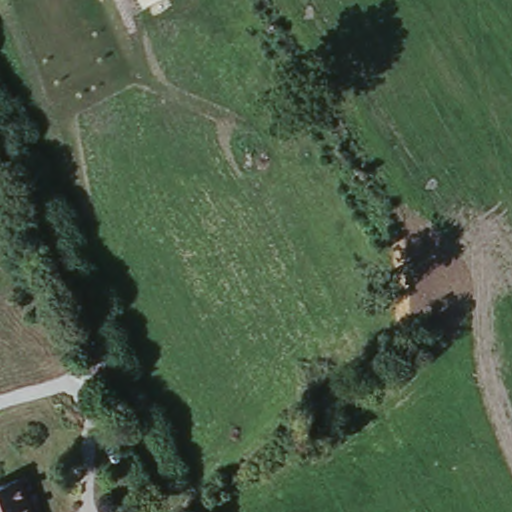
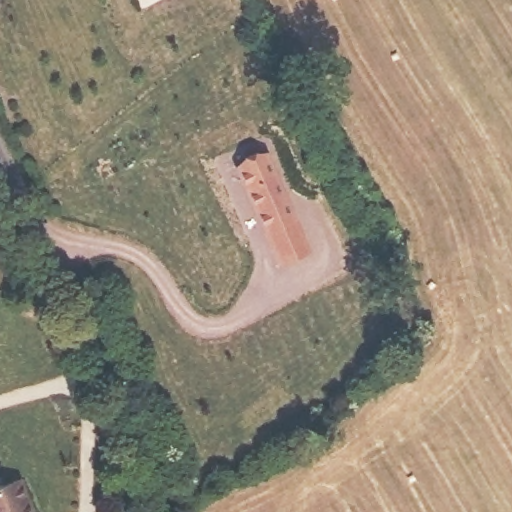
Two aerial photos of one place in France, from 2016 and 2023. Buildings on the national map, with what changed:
new [(282,259),(275,245),(240,165),(266,153),(302,234),(308,248),(282,259)]
unchanged [(0,488),(19,481),(31,512),(0,512),(0,488)]

